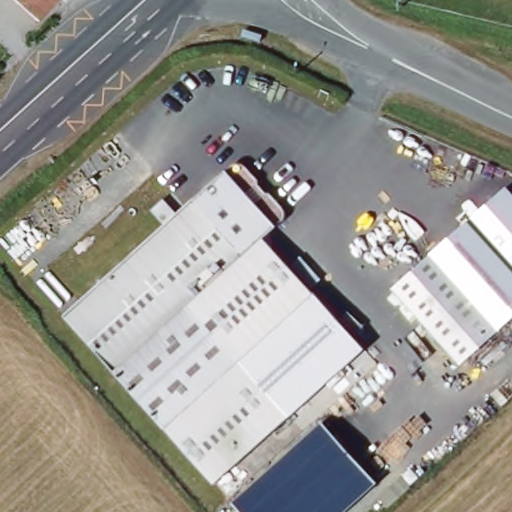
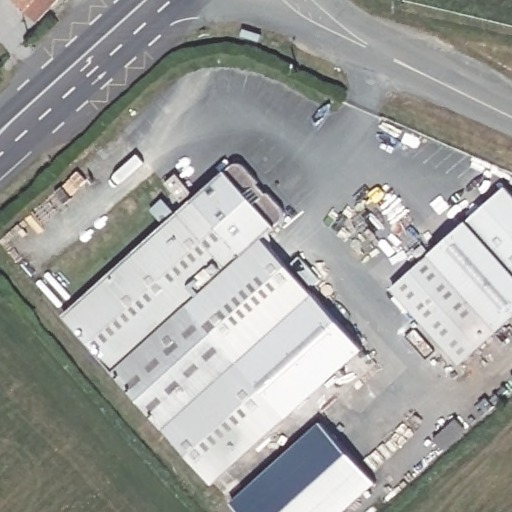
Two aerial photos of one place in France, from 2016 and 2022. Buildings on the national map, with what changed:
unchanged [(23,0),(55,0),(40,16),(23,0)]
unchanged [(320,286),(234,363),(284,418),(210,484),(110,373),(63,322),(237,164),(240,161),(252,159),(289,200),(288,214),(270,231),(320,286)]
unchanged [(391,288),(507,186),(512,192),(512,317),(460,364),(391,288)]
unchanged [(365,348),(284,418),(234,363),(312,292),(365,348)]
unchanged [(492,393),(512,377),(512,397),(502,405),(492,393)]
unchanged [(323,420),(377,482),(345,512),(241,512),(233,503),(323,420)]

